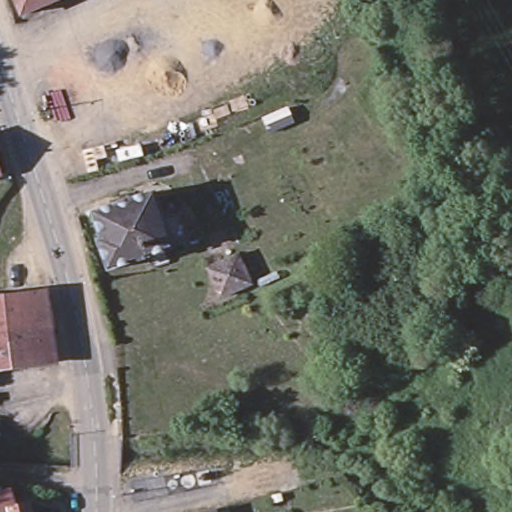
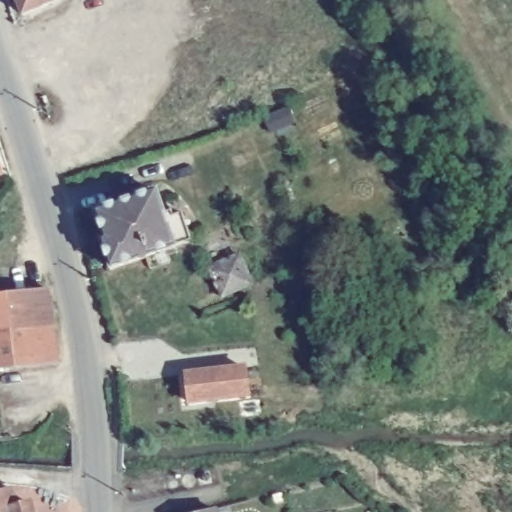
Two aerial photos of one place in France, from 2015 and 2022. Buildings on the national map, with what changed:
unchanged [(17,14),(11,0),(51,0),(17,14)]
unchanged [(95,240),(99,239),(90,214),(150,192),(158,213),(165,211),(167,216),(175,214),(185,241),(105,270),(95,240)]
unchanged [(240,256),(252,285),(242,290),(222,299),(209,269),(240,256)]
unchanged [(13,364),(13,368),(0,370),(0,292),(57,285),(62,324),(67,357),(65,358),(13,364)]
new [(250,399),(187,406),(183,372),(247,365),(250,399)]
unchanged [(12,508),(24,505),(26,512),(0,512),(0,491),(5,490),(12,508)]
unchanged [(215,512),(205,512),(214,510),(215,512)]

